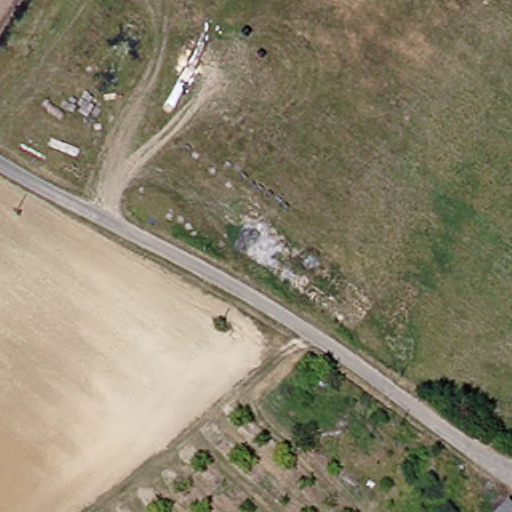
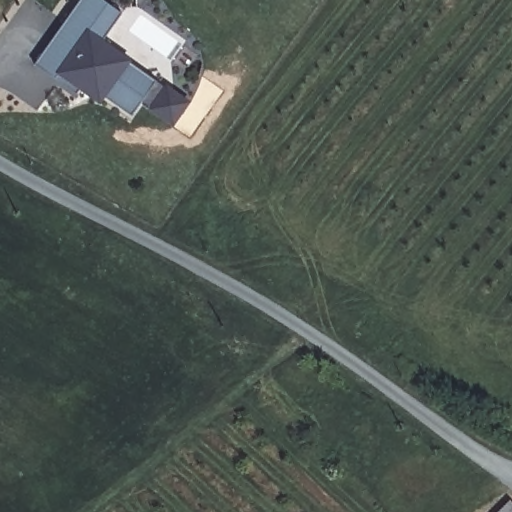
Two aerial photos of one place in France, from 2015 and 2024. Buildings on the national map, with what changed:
new [(81,0),(101,0),(122,13),(103,41),(131,60),(130,64),(155,82),(165,87),(167,85),(191,103),(173,128),(148,109),(140,102),(132,115),(105,97),(100,105),(78,89),(76,94),(35,66),(81,0)]
unchanged [(512,512),(504,512),(512,504),(512,512)]

